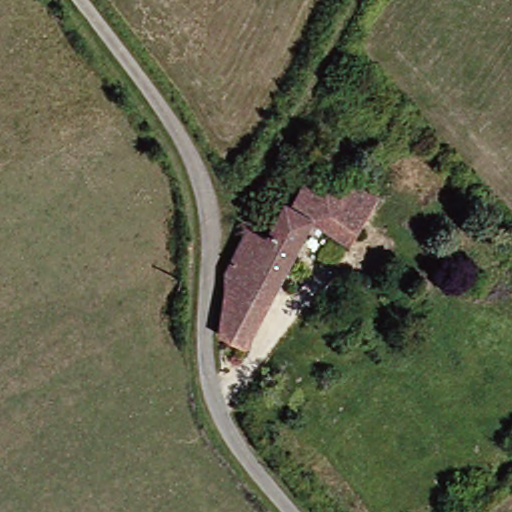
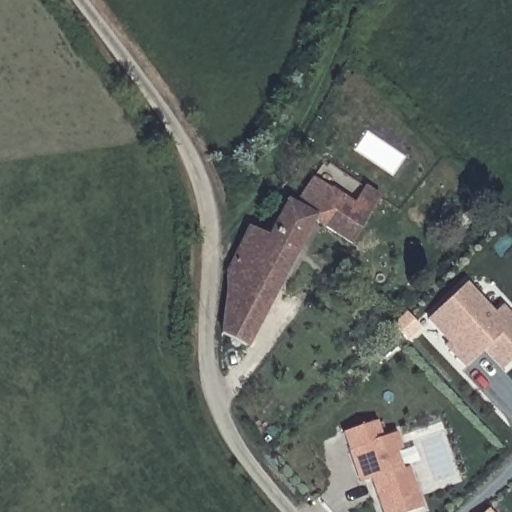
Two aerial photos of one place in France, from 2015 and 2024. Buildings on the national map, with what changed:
unchanged [(273,292),(222,277),(222,272),(243,232),(263,242),(281,206),(291,211),(309,175),(320,180),(313,192),(325,198),(331,186),(343,193),(347,185),(373,198),(347,248),(307,228),(273,292)]
unchanged [(241,351),(216,341),(222,277),(273,292),(241,351)]
new [(507,308),(512,313),(512,366),(508,370),(493,354),(475,371),(454,349),(458,344),(435,319),(472,285),(500,315),(507,308)]
new [(387,436),(401,431),(407,448),(401,450),(407,469),(413,467),(427,508),(414,512),(387,512),(365,447),(355,450),(348,432),(381,421),(387,436)]

